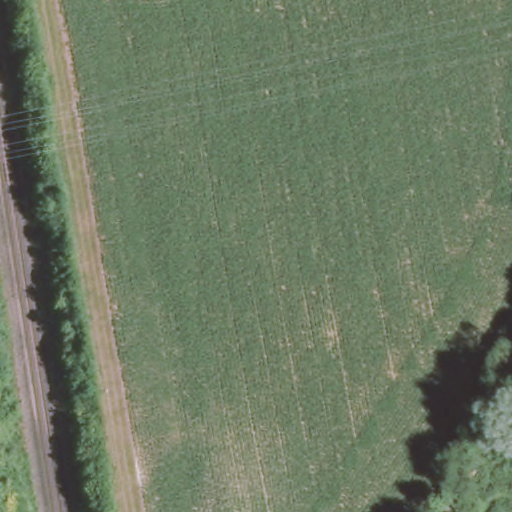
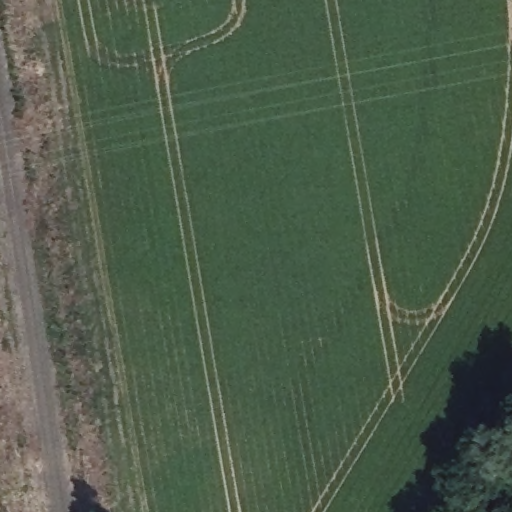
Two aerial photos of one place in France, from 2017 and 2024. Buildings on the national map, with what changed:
[]

